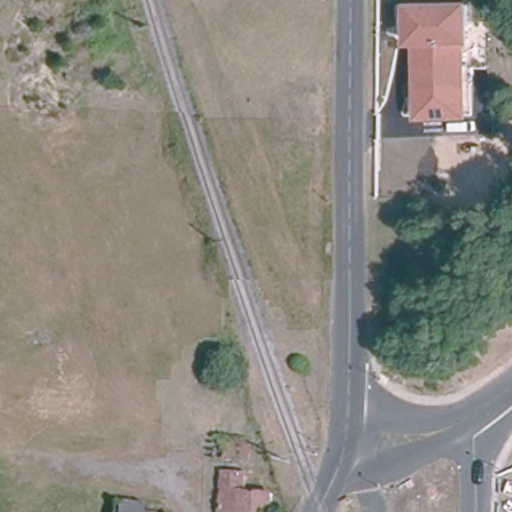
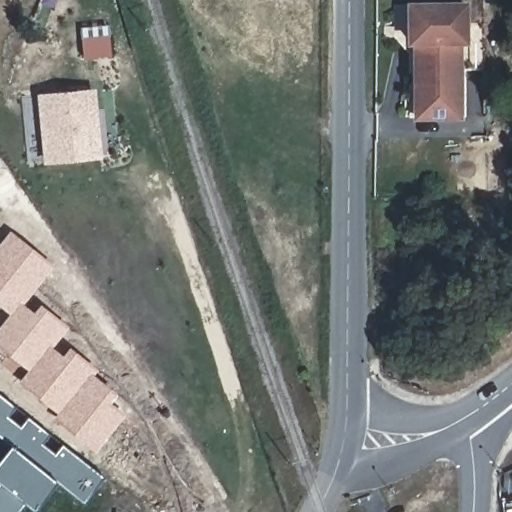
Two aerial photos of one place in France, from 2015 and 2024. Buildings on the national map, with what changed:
unchanged [(485,65),(465,65),(464,111),(409,110),(411,62),(417,62),(417,36),(411,35),(396,30),(397,0),(442,0),(487,1),(485,65)]
new [(109,25),(111,56),(83,60),(80,28),(109,25)]
new [(37,93),(96,88),(102,159),(43,165),(37,93)]
new [(54,266),(24,304),(33,311),(39,303),(68,327),(52,347),(62,355),(69,347),(97,369),(93,374),(117,394),(110,402),(125,415),(95,452),(52,419),(56,414),(17,382),(27,370),(0,348),(0,326),(9,314),(0,306),(0,243),(9,231),(54,266)]
new [(9,445),(0,437),(0,395),(14,407),(7,417),(20,426),(27,417),(49,433),(42,444),(54,454),(61,444),(102,477),(84,503),(54,480),(33,509),(25,503),(17,512),(0,512),(0,457),(9,445)]
demolished [(219,470),(241,471),(241,488),(268,489),(268,512),(218,512),(219,470)]

